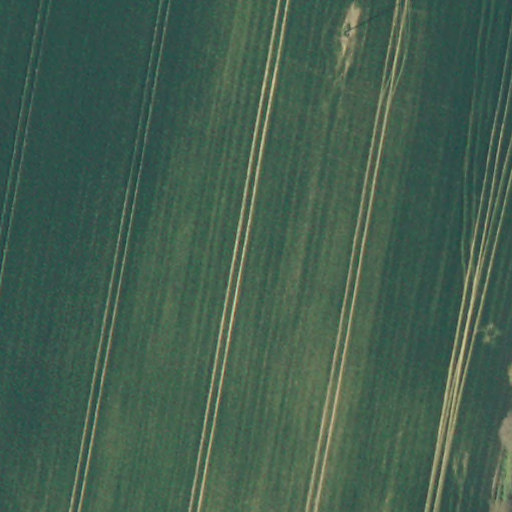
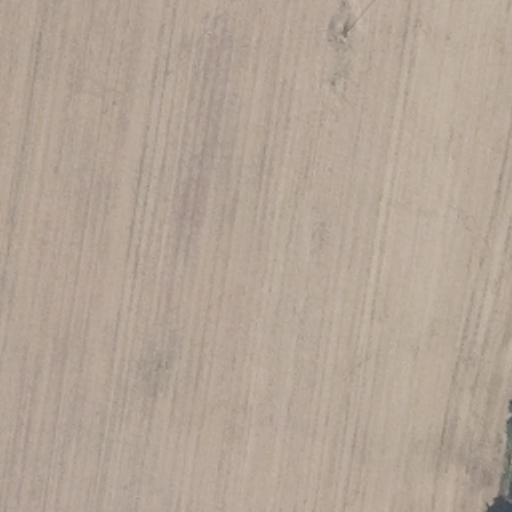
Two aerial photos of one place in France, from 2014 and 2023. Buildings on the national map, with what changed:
[]

